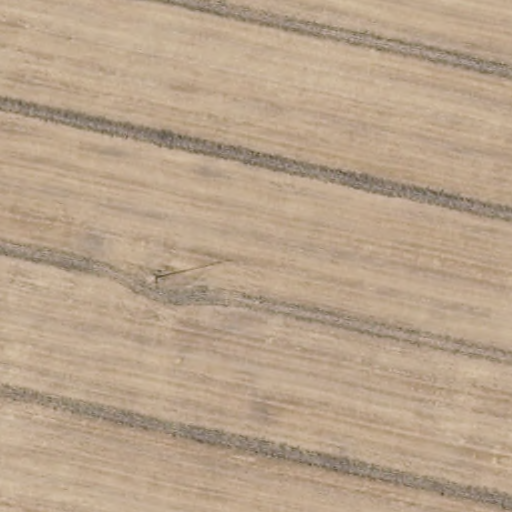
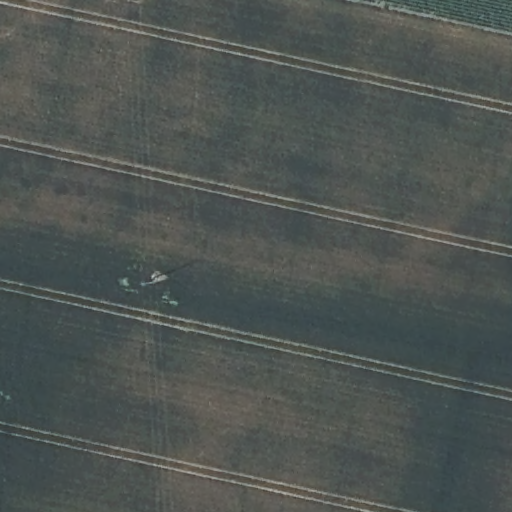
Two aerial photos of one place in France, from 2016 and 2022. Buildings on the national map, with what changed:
[]

